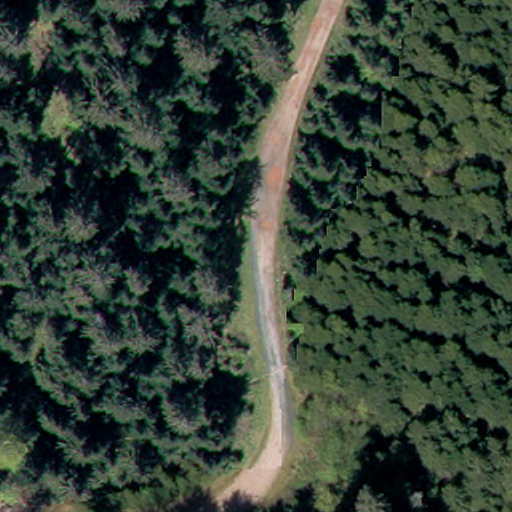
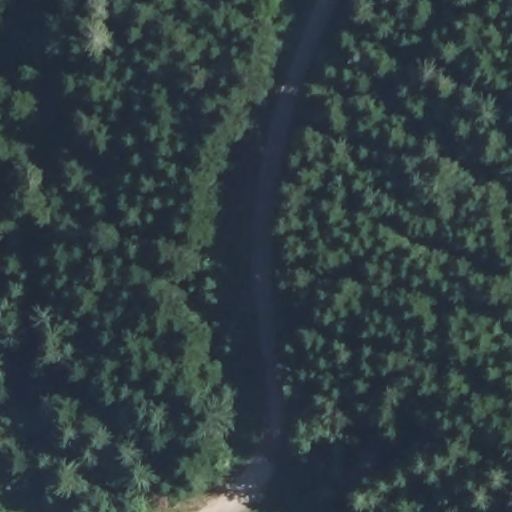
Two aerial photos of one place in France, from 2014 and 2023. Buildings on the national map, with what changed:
[]

